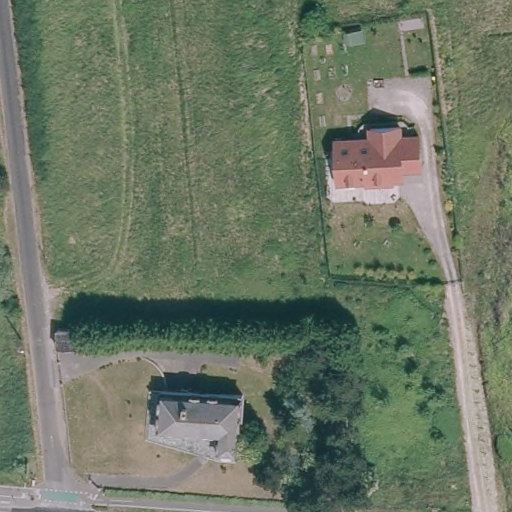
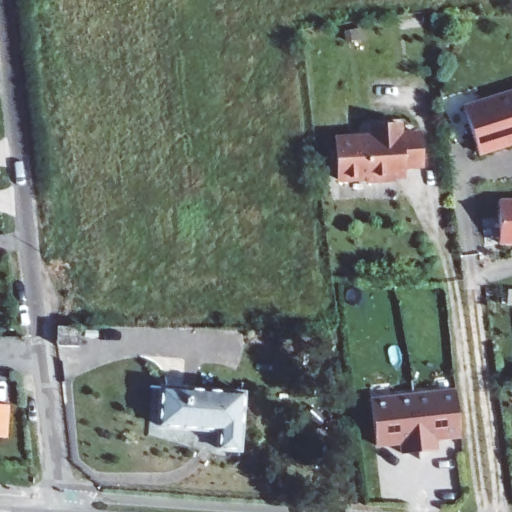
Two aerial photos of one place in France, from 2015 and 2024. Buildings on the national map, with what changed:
new [(467,107),(512,93),(512,143),(481,153),(467,107)]
unchanged [(397,176),(398,179),(370,181),(370,177),(342,180),(339,129),(374,127),(374,116),(404,114),(404,125),(423,124),(425,165),(406,166),(407,175),(397,176)]
new [(503,200),(512,201),(512,242),(502,242),(503,200)]
unchanged [(84,325),(84,344),(64,344),(64,325),(84,325)]
unchanged [(161,385),(182,387),(182,384),(188,385),(188,387),(243,391),(239,448),(216,447),(217,429),(158,425),(161,385)]
new [(460,390),(466,435),(441,438),(442,450),(426,452),(419,396),(460,390)]
new [(419,396),(426,452),(409,454),(407,443),(382,446),(376,401),(419,396)]
new [(8,405),(6,438),(0,438),(0,405),(8,405)]

